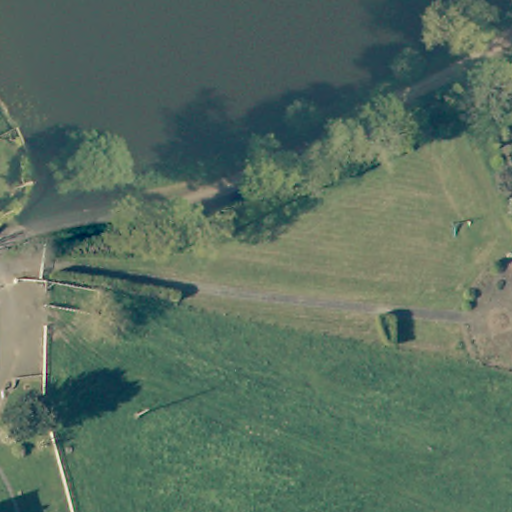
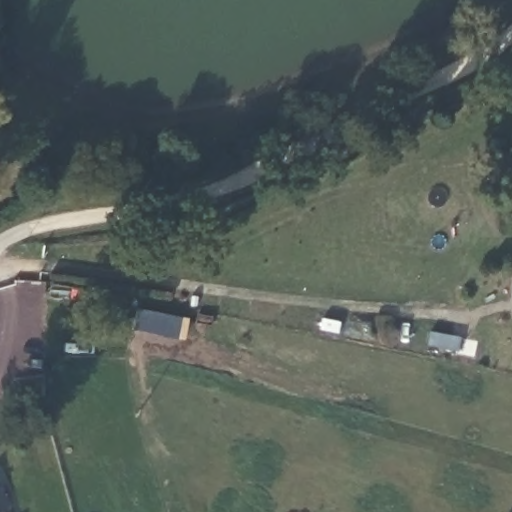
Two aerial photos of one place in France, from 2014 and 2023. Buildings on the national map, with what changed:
new [(142,312),(184,315),(184,336),(142,330),(142,312)]

